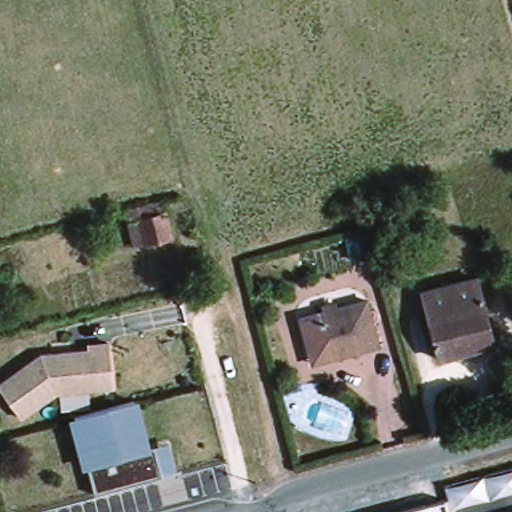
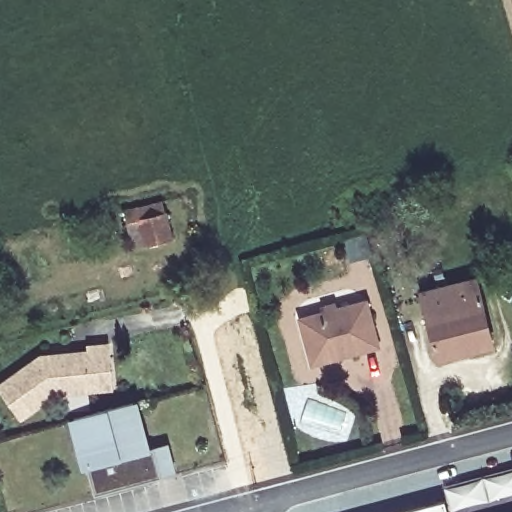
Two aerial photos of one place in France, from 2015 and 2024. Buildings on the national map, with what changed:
unchanged [(169,240),(143,247),(135,211),(160,205),(169,240)]
unchanged [(474,280),(492,348),(438,363),(420,295),(474,280)]
unchanged [(303,337),(298,319),(365,300),(377,345),(360,350),(311,363),(303,337)]
unchanged [(54,392),(20,417),(0,390),(0,382),(39,354),(51,353),(58,352),(86,349),(86,345),(107,342),(110,373),(112,387),(93,389),(54,392)]
unchanged [(165,472),(166,475),(99,493),(80,426),(78,416),(138,400),(140,410),(151,447),(158,445),(159,449),(171,445),(177,468),(165,472)]
unchanged [(446,512),(415,512),(443,505),(446,512)]

